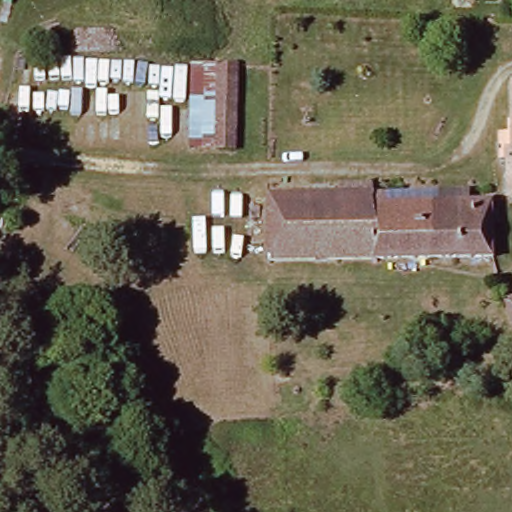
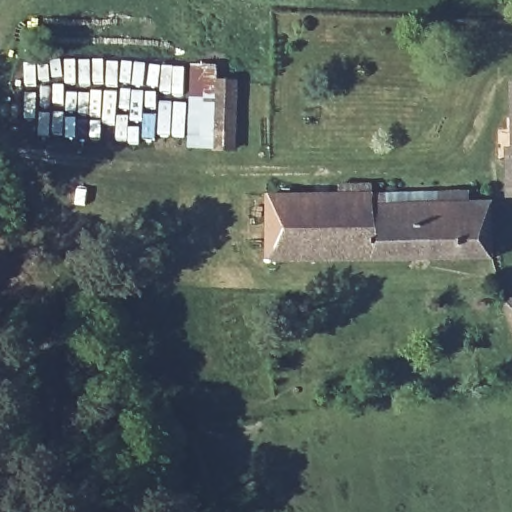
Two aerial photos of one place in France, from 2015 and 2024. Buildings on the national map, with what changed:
unchanged [(242,66),(239,153),(204,151),(204,146),(191,145),(194,65),(242,66)]
unchanged [(508,161),(512,161),(512,201),(508,201),(508,161)]
unchanged [(493,241),(493,259),(272,256),(273,192),(377,193),(377,206),(495,205),(495,210),(505,209),(505,241),(493,241)]
unchanged [(512,298),(512,333),(504,300),(512,298)]

